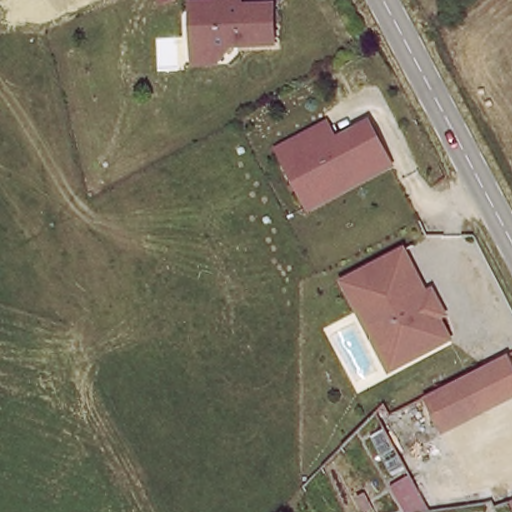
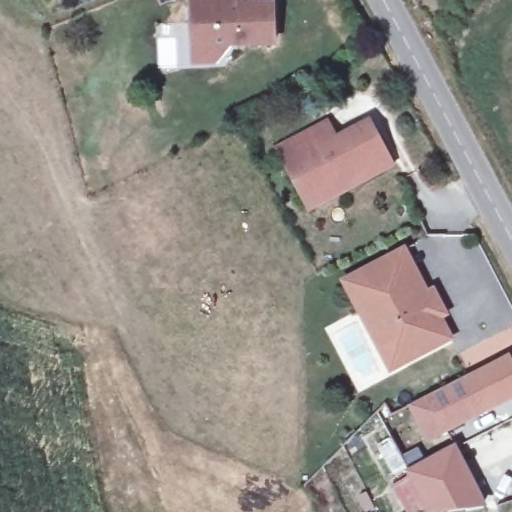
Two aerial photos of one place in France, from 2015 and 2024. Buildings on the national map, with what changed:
unchanged [(270,43),(223,44),(213,62),(186,64),(185,0),(268,0),(270,43)]
unchanged [(282,170),(270,149),(308,128),(318,122),(327,139),(360,121),(383,163),(328,193),(302,207),(282,170)]
unchanged [(423,288),(430,284),(444,313),(438,317),(448,338),(384,370),(334,276),(400,247),(423,288)]
unchanged [(512,396),(439,429),(422,393),(502,353),(512,374),(512,396)]
new [(442,512),(428,512),(426,509),(416,512),(408,512),(392,486),(408,475),(406,471),(457,445),(488,507),(442,512)]
demolished [(408,470),(410,474),(421,469),(439,506),(425,507),(404,512),(389,480),(408,470)]

